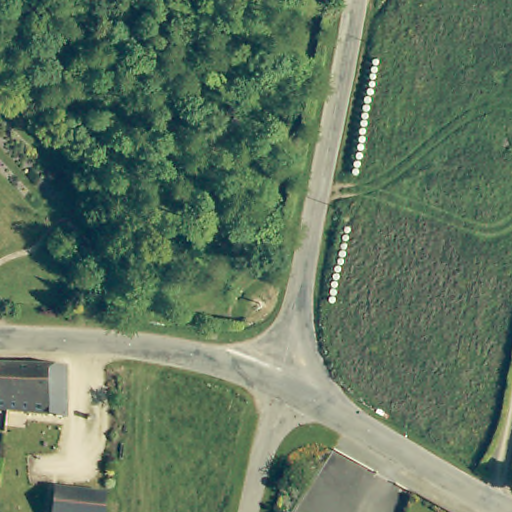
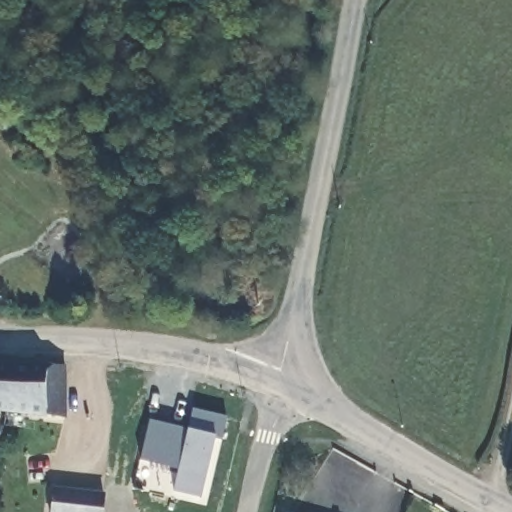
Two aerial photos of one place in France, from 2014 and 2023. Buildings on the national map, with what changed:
unchanged [(18,370),(52,368),(52,367),(69,367),(67,411),(66,415),(0,410),(0,368),(18,370)]
new [(223,442),(215,439),(200,496),(173,491),(177,469),(141,462),(150,420),(188,427),(192,409),(228,416),(223,442)]
unchanged [(54,489),(95,492),(103,493),(102,512),(52,512),(54,489)]

